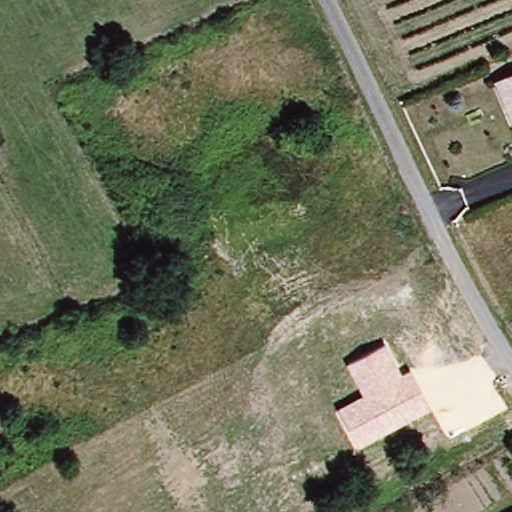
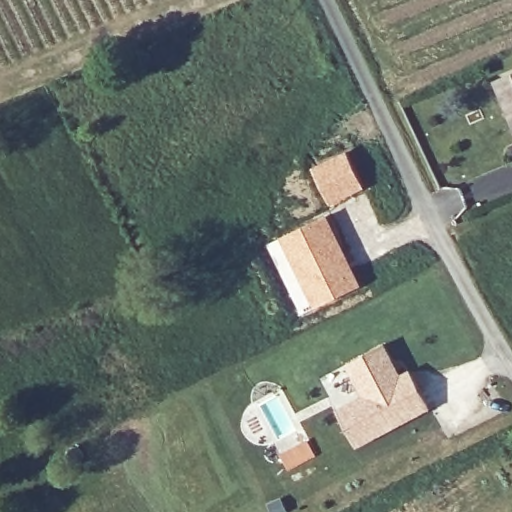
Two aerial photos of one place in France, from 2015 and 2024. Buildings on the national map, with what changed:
unchanged [(509,117),(494,82),(512,73),(512,124),(509,117)]
new [(346,149),(366,187),(332,206),(311,167),(346,149)]
new [(328,215),(362,285),(300,316),(266,245),(328,215)]
unchanged [(385,346),(401,376),(411,369),(431,408),(358,448),(338,410),(364,395),(348,365),(385,346)]

